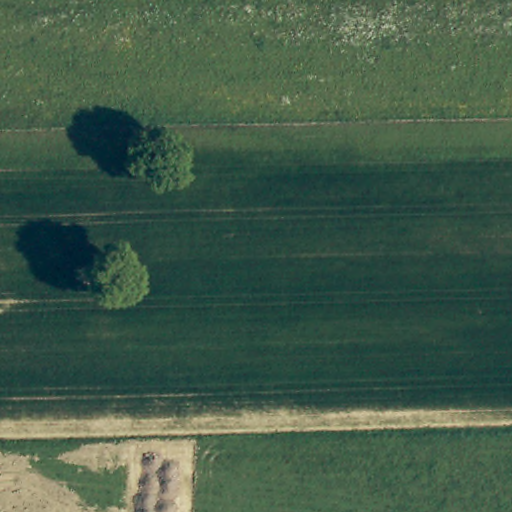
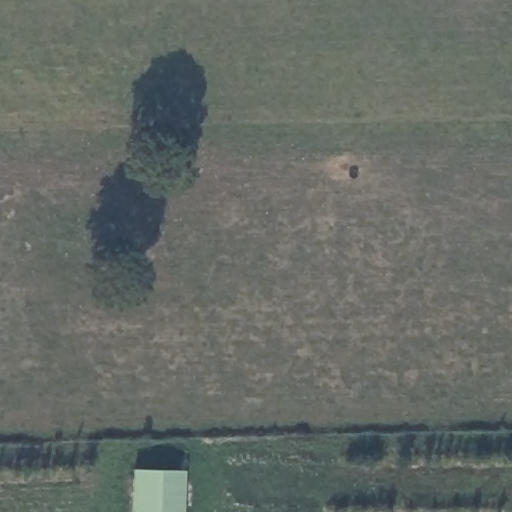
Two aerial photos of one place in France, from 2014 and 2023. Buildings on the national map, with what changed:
new [(183,471),(182,512),(130,512),(131,469),(183,471)]

